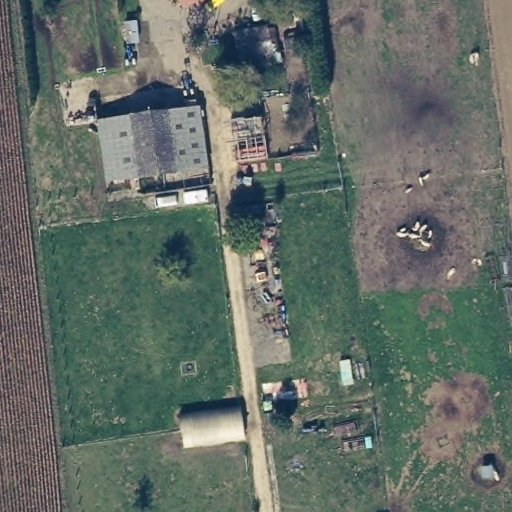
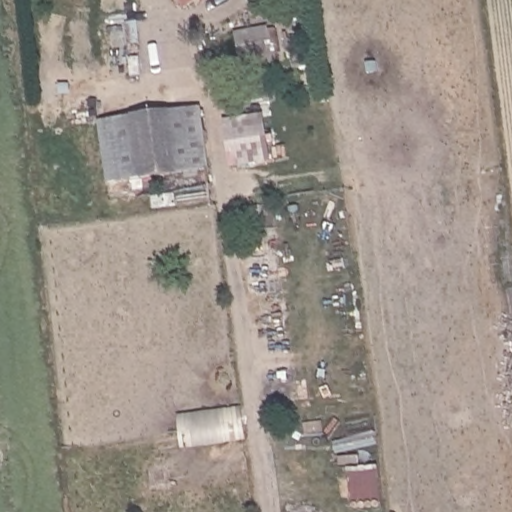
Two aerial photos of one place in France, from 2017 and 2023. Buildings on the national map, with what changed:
unchanged [(180,0),(205,0),(188,12),(180,0)]
unchanged [(272,27),(277,60),(237,63),(234,31),(272,27)]
unchanged [(202,118),(210,177),(175,182),(170,122),(202,118)]
unchanged [(170,122),(175,182),(142,187),(136,127),(170,122)]
unchanged [(142,187),(105,193),(97,135),(136,127),(142,187)]
unchanged [(240,408),(244,446),(180,452),(175,415),(240,408)]

